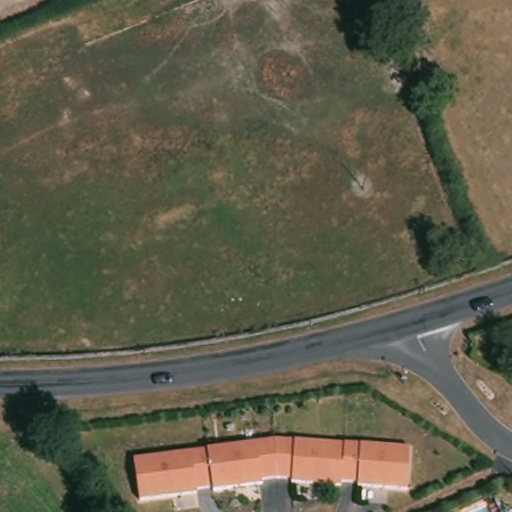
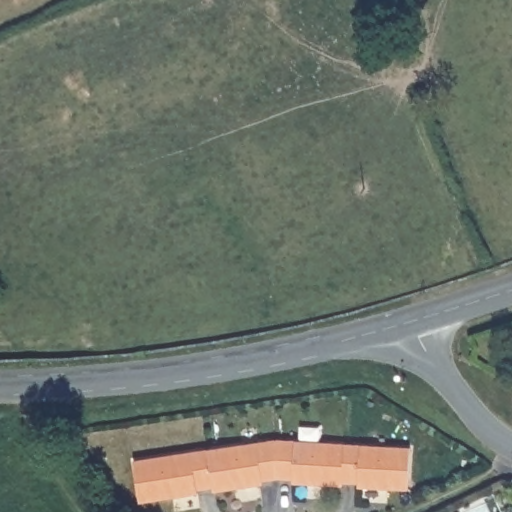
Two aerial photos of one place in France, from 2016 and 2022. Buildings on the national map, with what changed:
unchanged [(272,437),(274,478),(260,479),(260,482),(210,490),(210,486),(204,449),(272,437)]
unchanged [(341,444),(338,482),(338,485),(288,482),(289,478),(274,478),(272,437),(341,444)]
unchanged [(407,449),(404,490),(355,486),(355,483),(338,482),(341,444),(407,449)]
unchanged [(195,489),(195,492),(136,501),(130,460),(204,449),(210,486),(195,489)]

